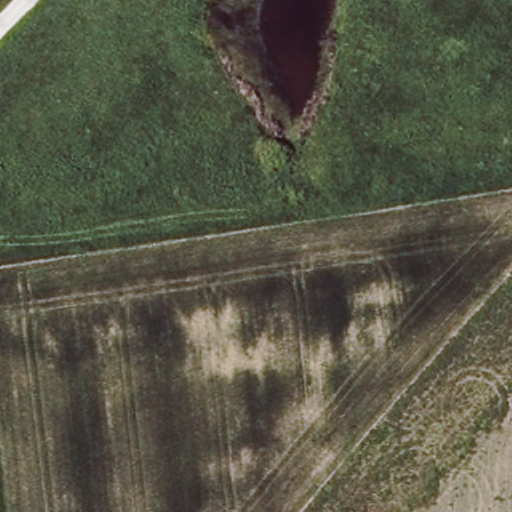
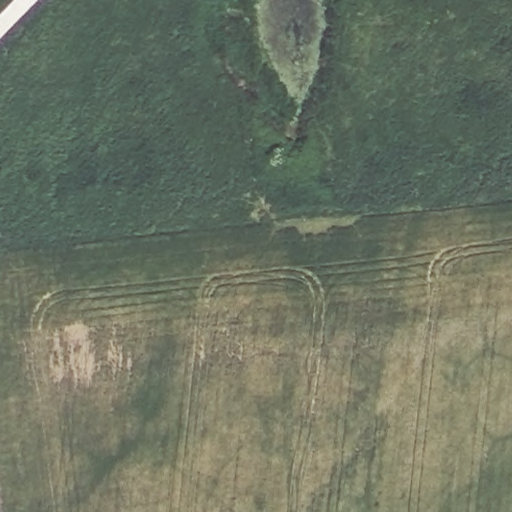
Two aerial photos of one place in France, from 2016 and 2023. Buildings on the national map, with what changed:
[]

